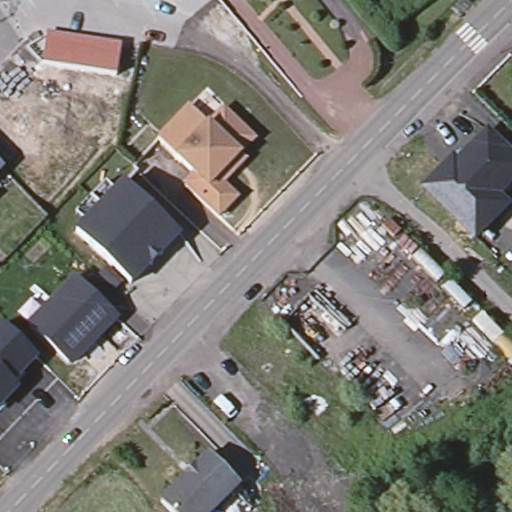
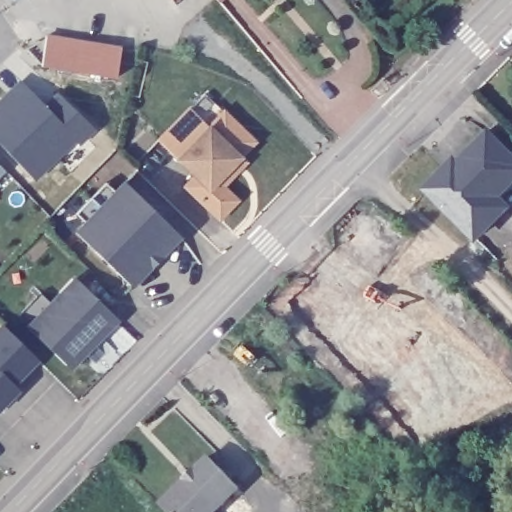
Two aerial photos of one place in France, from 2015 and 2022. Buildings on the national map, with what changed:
unchanged [(41,63),(48,33),(121,46),(115,77),(41,63)]
new [(80,145),(75,141),(35,180),(0,144),(0,96),(19,78),(43,103),(56,91),(95,129),(80,145)]
unchanged [(218,215),(213,209),(185,182),(193,172),(158,137),(204,90),(247,132),(253,138),(239,153),(245,158),(221,182),(231,191),(236,196),(218,215)]
unchanged [(455,154),(457,157),(488,129),(512,153),(512,187),(501,196),(511,206),(475,242),(420,189),(455,154)]
unchanged [(0,175),(0,170),(2,172),(0,175)]
unchanged [(76,228),(85,219),(105,199),(125,178),(179,230),(155,256),(135,275),(130,280),(76,228)]
unchanged [(46,303),(75,274),(117,315),(87,345),(75,358),(67,358),(29,321),(46,303)]
unchanged [(37,361),(15,383),(19,390),(0,411),(0,330),(2,328),(37,361)]
unchanged [(206,453),(236,483),(207,512),(172,512),(160,499),(206,453)]

